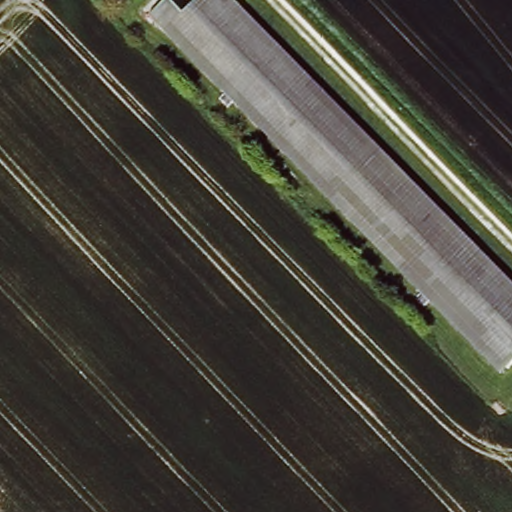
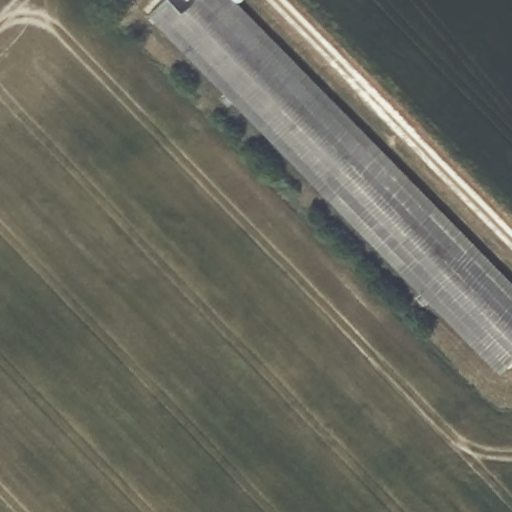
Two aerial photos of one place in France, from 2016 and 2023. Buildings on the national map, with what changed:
unchanged [(512,360),(495,375),(160,26),(158,29),(142,12),(154,0),(163,0),(175,11),(186,0),(222,0),(512,302),(512,360)]

